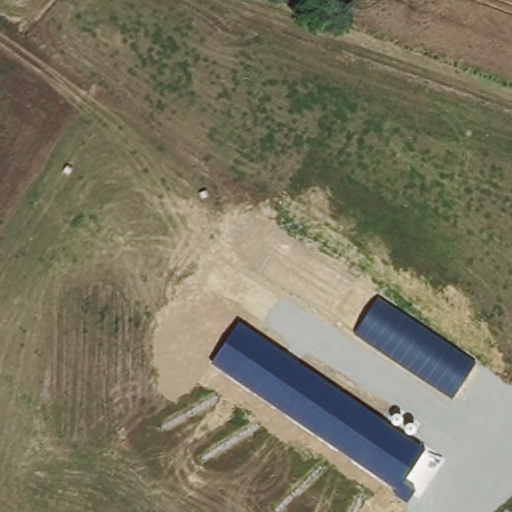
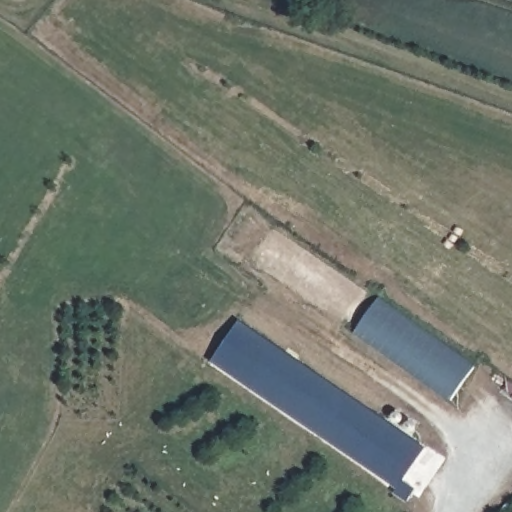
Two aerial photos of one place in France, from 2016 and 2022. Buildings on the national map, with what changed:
unchanged [(357,327),(379,297),(476,364),(456,394),(357,327)]
unchanged [(394,494),(398,489),(210,361),(241,319),(426,447),(404,481),(415,489),(408,503),(394,494)]

